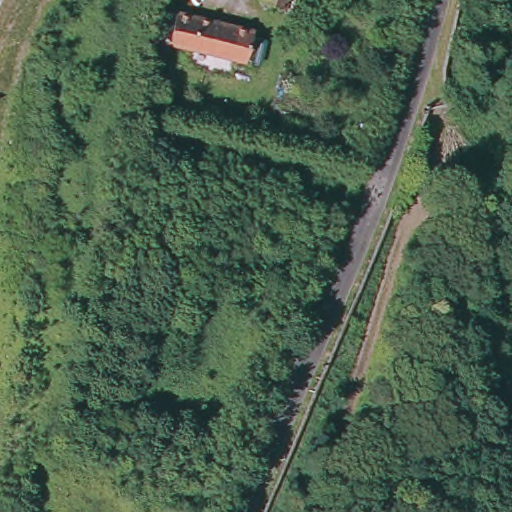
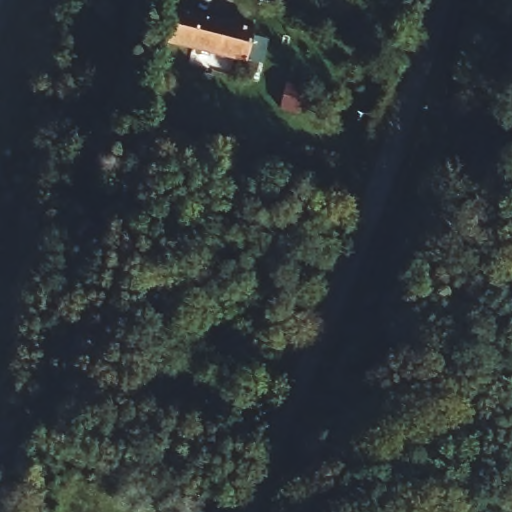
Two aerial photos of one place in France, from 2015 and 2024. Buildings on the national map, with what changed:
unchanged [(274,0),(284,0),(283,3),(274,0)]
unchanged [(257,26),(248,56),(247,56),(164,36),(166,27),(158,25),(159,15),(169,17),(172,5),(257,26)]

